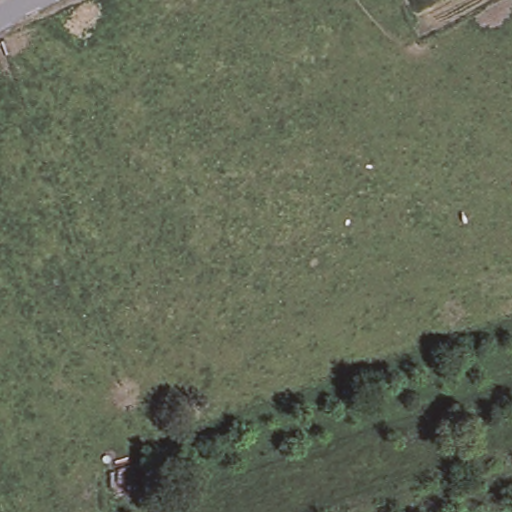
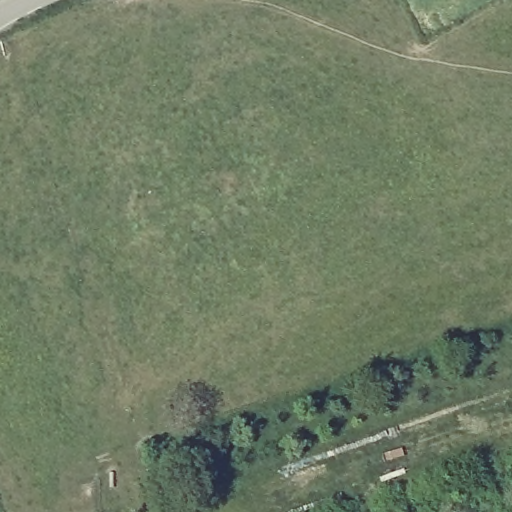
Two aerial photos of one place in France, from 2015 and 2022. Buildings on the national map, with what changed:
[]

